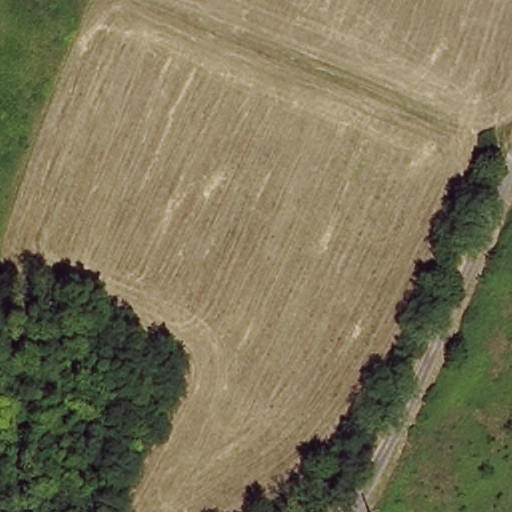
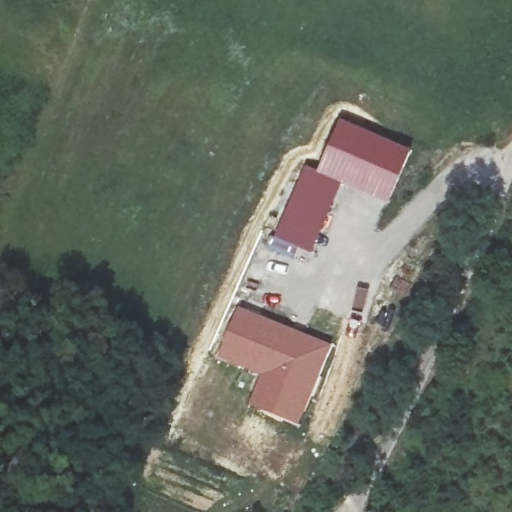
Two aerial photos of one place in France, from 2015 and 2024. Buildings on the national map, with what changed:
new [(338,116),(412,149),(389,204),(342,184),(318,170),(338,116)]
new [(302,162),(318,170),(342,184),(312,254),(270,237),(302,162)]
new [(235,304),(332,344),(298,427),(245,405),(257,376),(212,356),(235,304)]

